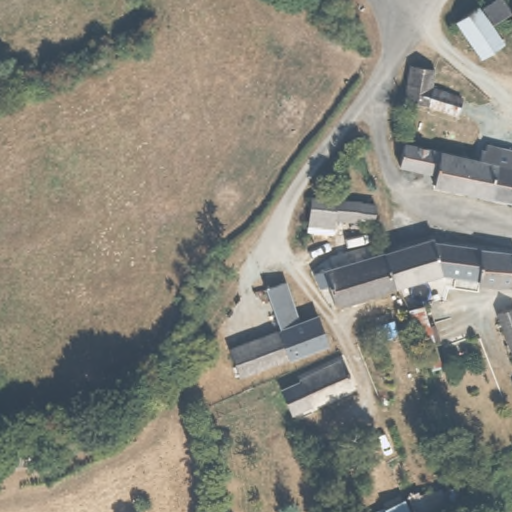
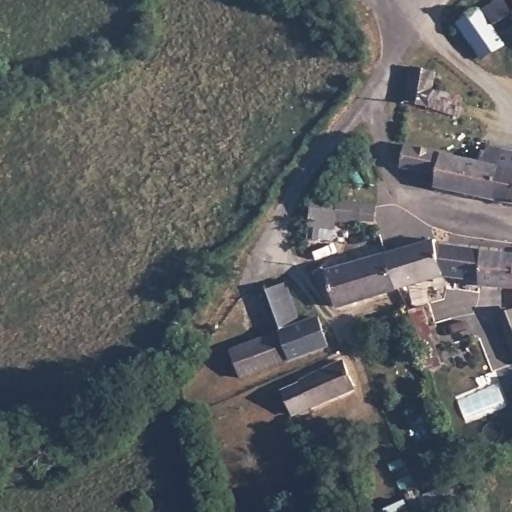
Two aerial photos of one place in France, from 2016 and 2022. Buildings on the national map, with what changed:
unchanged [(487,0),(504,0),(511,14),(491,26),(505,42),(481,59),(452,21),(487,0)]
unchanged [(361,16),(361,17),(361,18),(360,19),(360,20),(359,21),(358,22),(357,23),(357,24),(356,24),(355,25),(353,26),(352,26),(351,26),(350,26),(348,26),(347,26),(346,26),(345,26),(344,25),(342,24),(342,23),(341,23),(341,22),(340,20),(339,20),(338,19),(338,18),(338,17),(338,16),(338,14),(338,13),(338,12),(339,12),(339,11),(340,11),(340,10),(341,9),(342,8),(342,7),(343,6),(344,6),(345,5),(346,5),(347,4),(348,4),(350,4),(351,4),(352,4),(353,5),(354,5),(355,6),(356,6),(356,7),(357,7),(357,8),(358,9),(360,10),(360,11),(360,12),(361,13),(361,14),(361,15),(361,16)]
unchanged [(462,112),(436,105),(397,102),(402,66),(425,67),(423,86),(438,88),(465,95),(462,112)]
unchanged [(508,202),(431,187),(431,177),(395,170),(398,148),(477,163),(481,150),(512,156),(512,203),(508,202)]
unchanged [(308,193),(375,201),(372,221),(335,216),(335,229),(302,226),(308,193)]
unchanged [(452,277),(406,285),(397,250),(445,242),(452,277)]
unchanged [(512,256),(512,290),(482,287),(482,281),(452,277),(445,242),(512,256)]
unchanged [(321,263),(397,250),(406,285),(335,298),(332,278),(322,279),(321,263)]
unchanged [(281,278),(295,320),(315,314),(326,342),(287,357),(274,329),(262,287),(281,278)]
unchanged [(494,315),(512,309),(512,355),(494,315)]
unchanged [(274,329),(287,357),(241,377),(227,345),(274,329)]
unchanged [(283,390),(299,384),(347,365),(357,389),(308,408),(293,414),(283,390)]
unchanged [(409,512),(384,512),(406,502),(409,512)]

